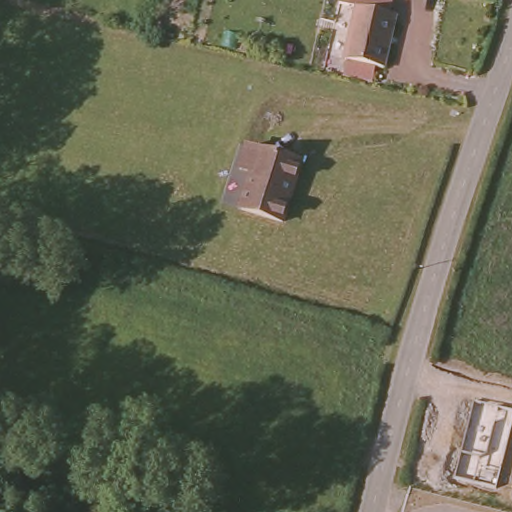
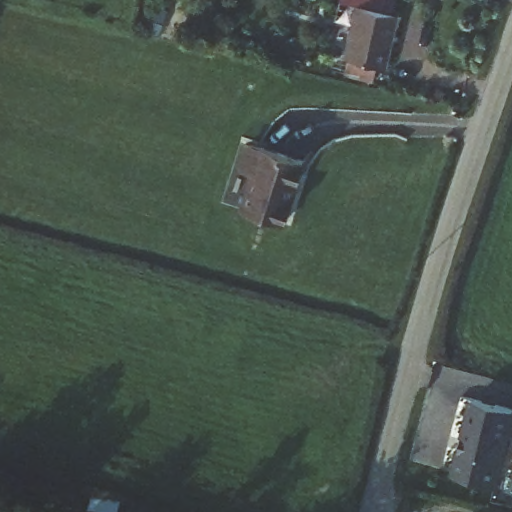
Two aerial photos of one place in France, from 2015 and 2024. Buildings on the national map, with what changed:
unchanged [(349,59),(360,6),(399,15),(387,67),(349,59)]
unchanged [(257,172),(245,169),(252,146),(307,162),(288,222),(245,209),(257,172)]
unchanged [(512,432),(496,494),(452,481),(475,403),(512,415),(512,432)]

